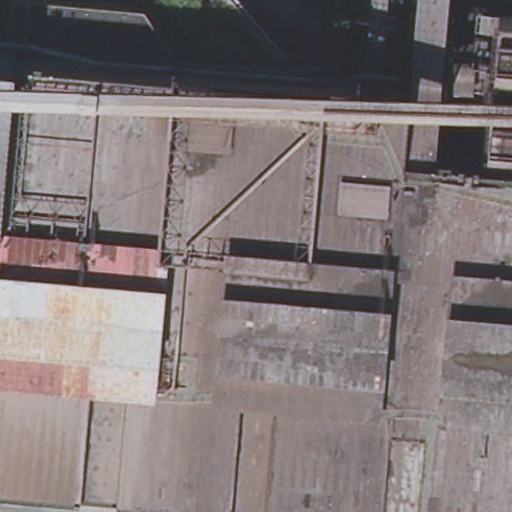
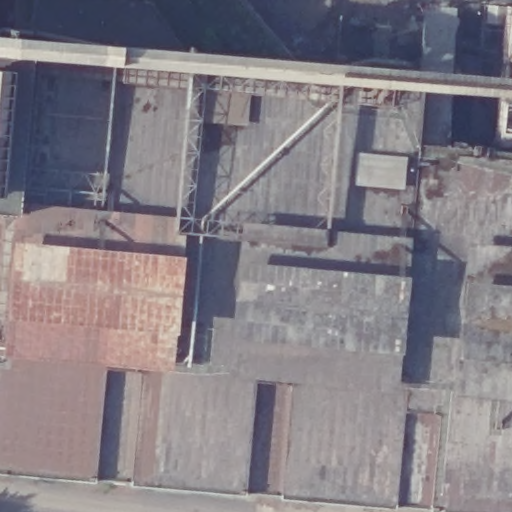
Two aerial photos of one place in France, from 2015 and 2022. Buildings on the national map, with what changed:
unchanged [(403,134),(486,136),(496,0),(512,0),(512,506),(0,461),(0,32),(401,61),(403,134)]

